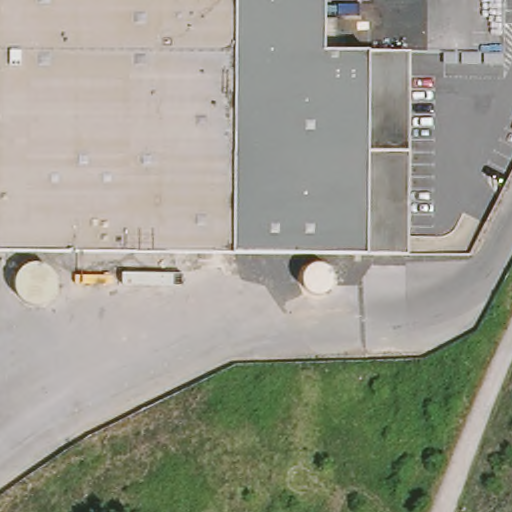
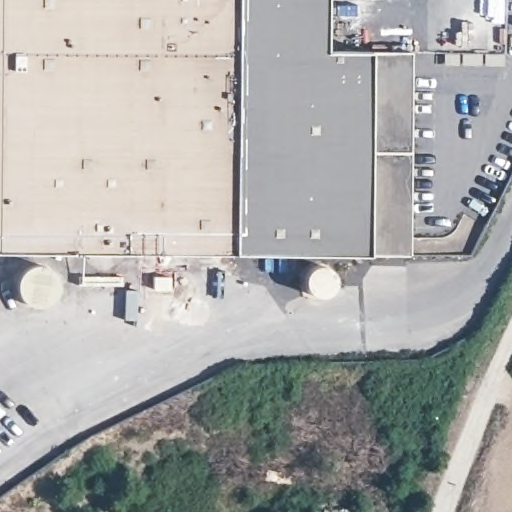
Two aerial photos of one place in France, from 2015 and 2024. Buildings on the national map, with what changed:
unchanged [(322,53),(365,53),(405,53),(406,253),(365,252),(0,252),(0,0),(322,0),(322,53)]

